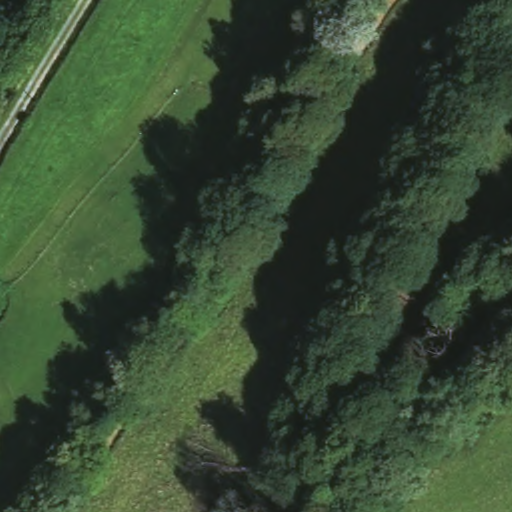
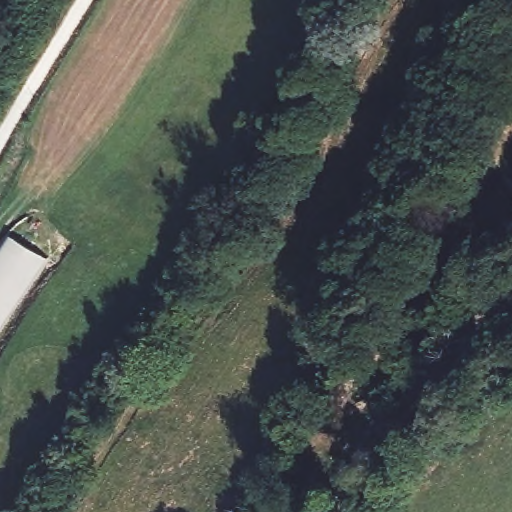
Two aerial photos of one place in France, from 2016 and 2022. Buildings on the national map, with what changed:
new [(45,260),(0,329),(0,250),(9,237),(45,260)]

